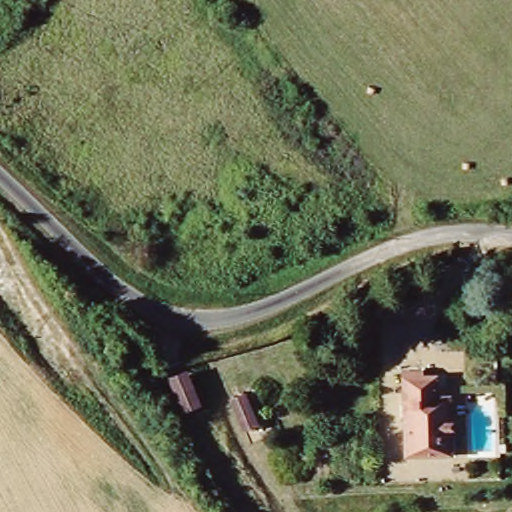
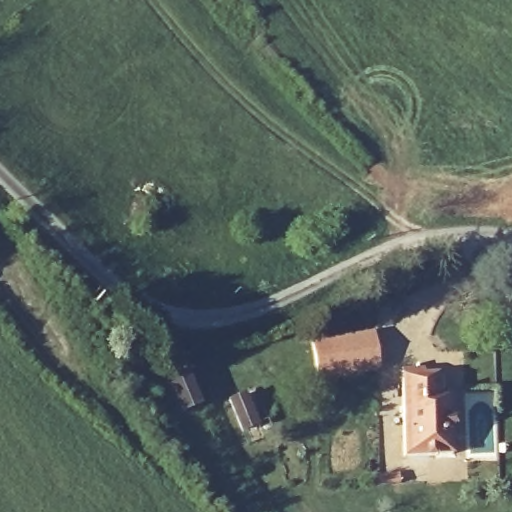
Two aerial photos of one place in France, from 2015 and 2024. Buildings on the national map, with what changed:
new [(318,379),(310,340),(371,331),(378,370),(318,379)]
unchanged [(454,390),(453,450),(405,450),(407,364),(426,365),(426,370),(441,372),(441,390),(454,390)]
unchanged [(183,411),(169,380),(184,373),(198,404),(183,411)]
unchanged [(231,404),(245,398),(255,424),(242,428),(231,404)]
demolished [(264,439),(278,433),(288,459),(275,463),(264,439)]

